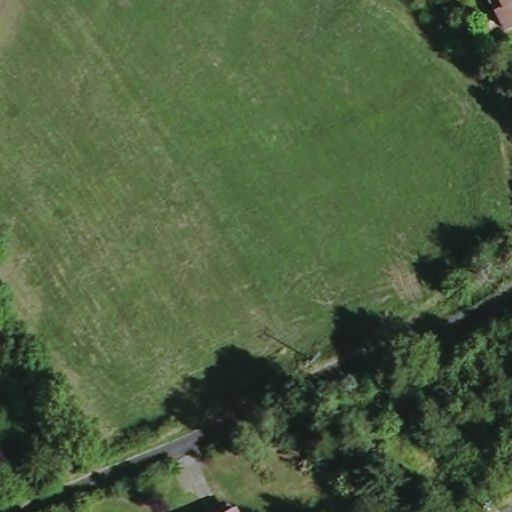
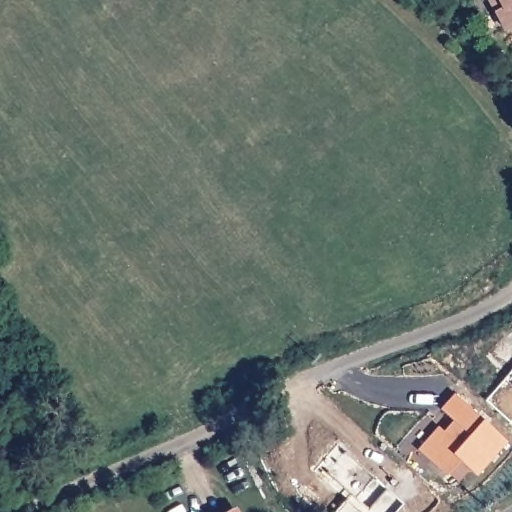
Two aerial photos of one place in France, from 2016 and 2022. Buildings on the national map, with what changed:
unchanged [(493,2),(497,0),(512,0),(512,34),(509,35),(493,2)]
new [(512,385),(507,380),(512,375),(512,385)]
new [(461,461),(448,474),(418,449),(439,427),(443,431),(454,420),(441,408),(454,393),(508,441),(478,476),(461,461)]

